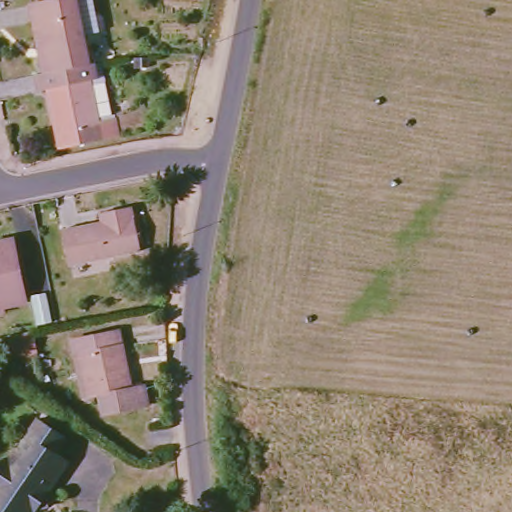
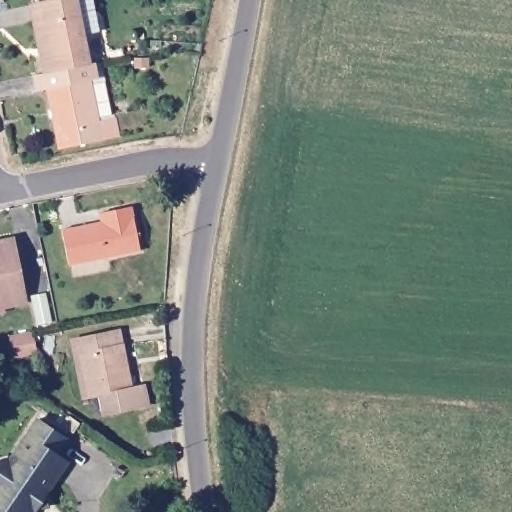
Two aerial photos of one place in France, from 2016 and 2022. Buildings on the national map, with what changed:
unchanged [(41,0),(89,0),(95,30),(79,33),(84,62),(44,71),(32,2),(41,0)]
unchanged [(90,61),(104,59),(115,112),(117,112),(122,134),(64,147),(52,89),(45,91),(41,72),(44,71),(84,62),(90,61)]
unchanged [(143,249),(73,263),(66,227),(104,220),(102,208),(116,206),(135,202),(143,249)]
unchanged [(0,237),(16,234),(29,301),(3,306),(4,312),(0,313),(0,237)]
unchanged [(36,329),(40,351),(19,355),(14,333),(36,329)]
unchanged [(72,359),(67,341),(124,329),(138,390),(155,387),(157,405),(111,415),(106,396),(89,399),(80,401),(72,359)]
unchanged [(59,438),(52,453),(66,461),(38,512),(0,512),(0,488),(27,440),(35,425),(59,438)]

